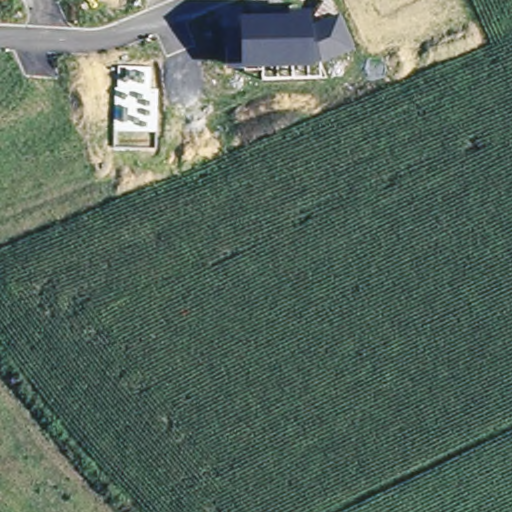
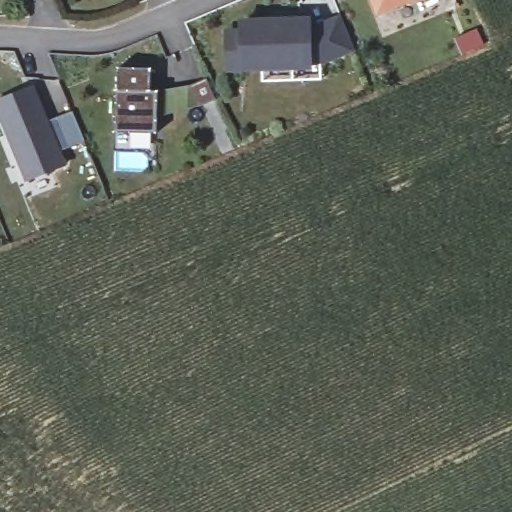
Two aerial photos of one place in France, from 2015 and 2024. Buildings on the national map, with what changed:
unchanged [(370,0),(396,0),(374,9),(370,0)]
unchanged [(239,30),(240,18),(289,16),(289,12),(311,11),(311,25),(314,25),(339,15),(354,52),(321,65),(310,67),(240,70),(227,70),(225,31),(239,30)]
new [(476,31),(483,47),(467,54),(460,37),(476,31)]
unchanged [(117,88),(118,67),(152,68),(151,91),(157,91),(156,147),(113,147),(114,88),(117,88)]
new [(68,107),(81,139),(65,145),(56,149),(61,162),(47,167),(24,177),(0,119),(0,95),(29,83),(43,117),(52,114),(68,107)]

